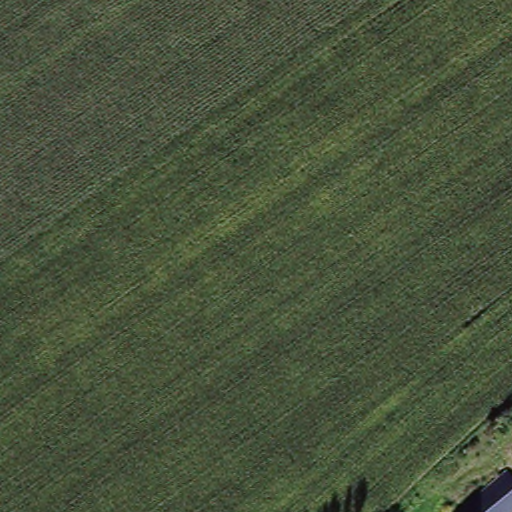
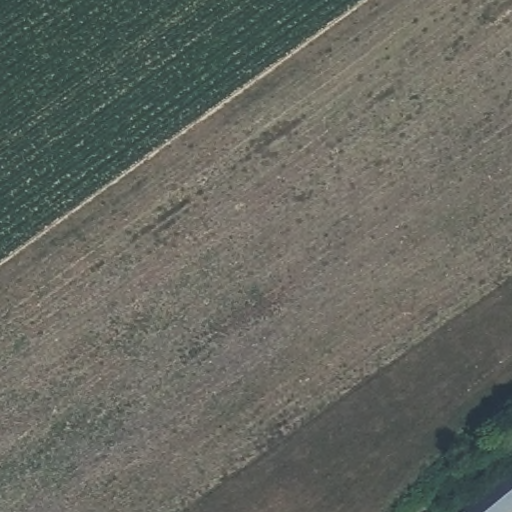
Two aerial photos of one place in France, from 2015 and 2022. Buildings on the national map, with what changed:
unchanged [(512,479),(512,512),(463,512),(507,473),(512,479)]

